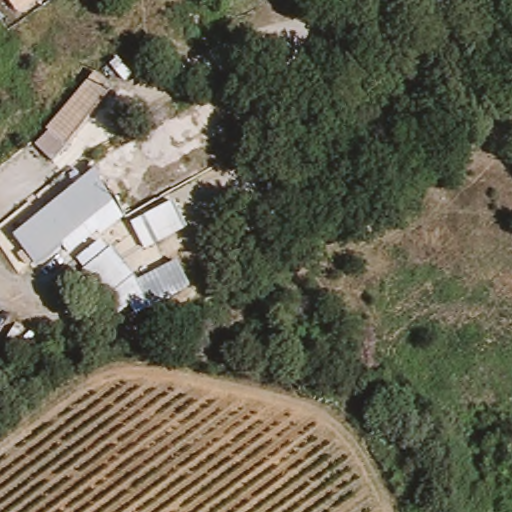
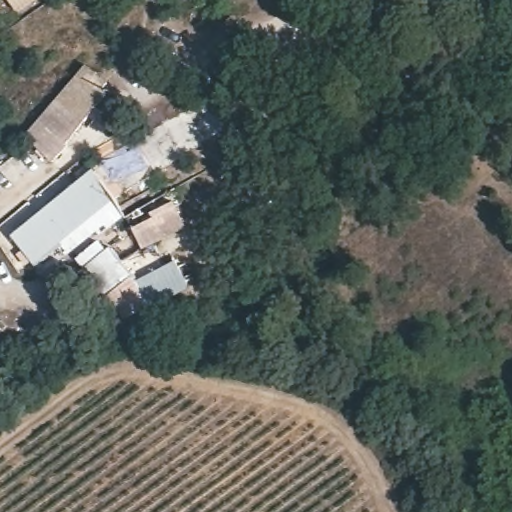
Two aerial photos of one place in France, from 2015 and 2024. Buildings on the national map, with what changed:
unchanged [(17,0),(46,0),(26,11),(17,0)]
unchanged [(51,130),(50,128),(93,73),(112,87),(70,139),(72,141),(65,149),(56,141),(46,150),(38,144),(51,130)]
unchanged [(96,237),(93,233),(65,256),(62,253),(38,270),(9,234),(91,172),(123,217),(96,237)]
unchanged [(153,219),(151,213),(171,203),(181,223),(160,233),(163,239),(141,249),(133,229),(153,219)]
unchanged [(100,245),(108,255),(113,251),(143,291),(161,283),(158,277),(178,268),(188,289),(168,297),(171,303),(150,312),(145,301),(131,310),(120,296),(112,303),(80,262),(100,245)]

